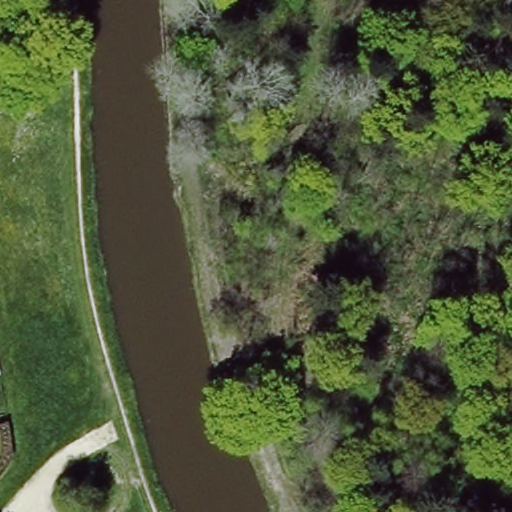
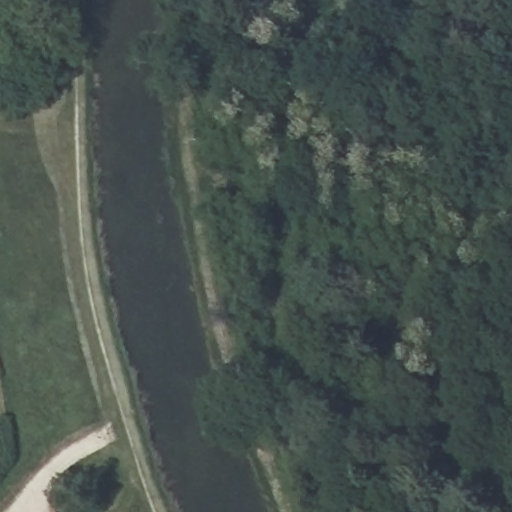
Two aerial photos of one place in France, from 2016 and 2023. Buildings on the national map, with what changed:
unchanged [(3,369),(0,370),(0,355),(3,369)]

